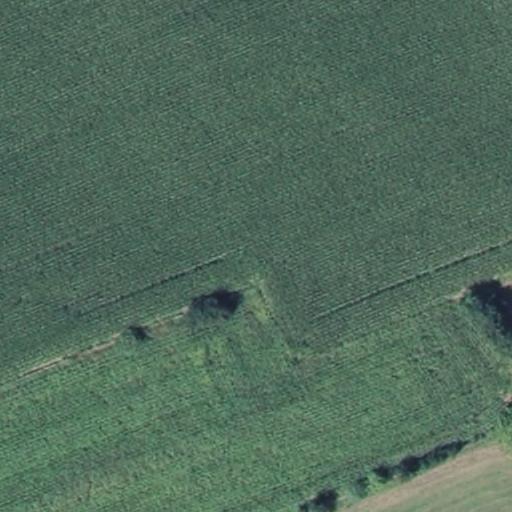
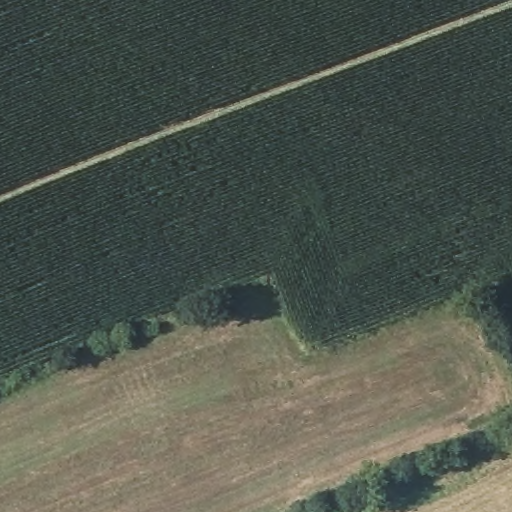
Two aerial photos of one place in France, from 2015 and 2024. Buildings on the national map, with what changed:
[]

